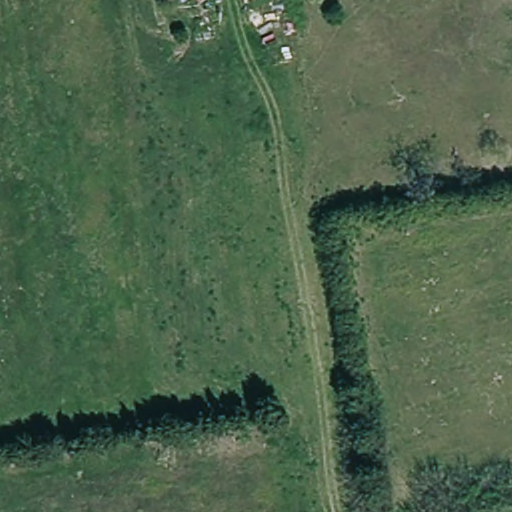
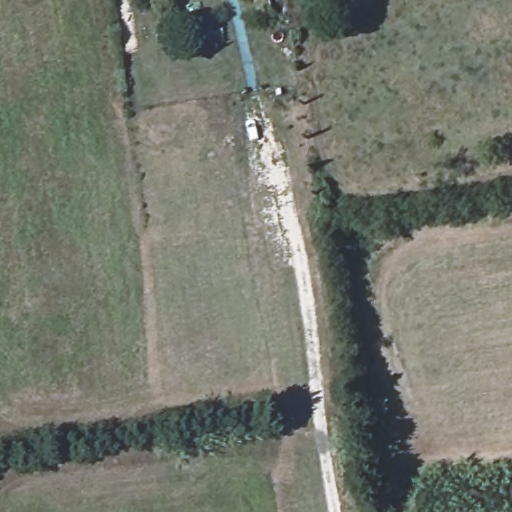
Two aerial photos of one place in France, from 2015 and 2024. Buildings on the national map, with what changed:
[]

